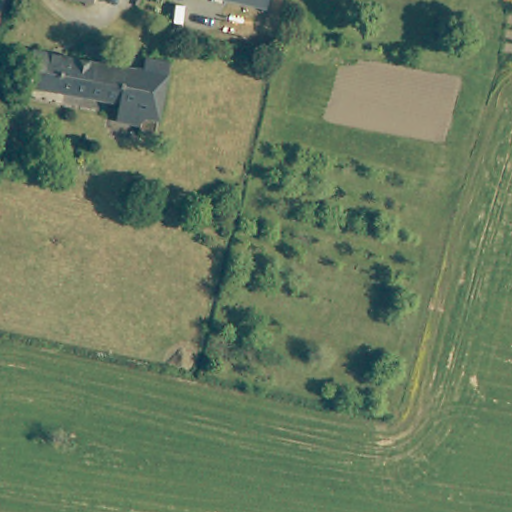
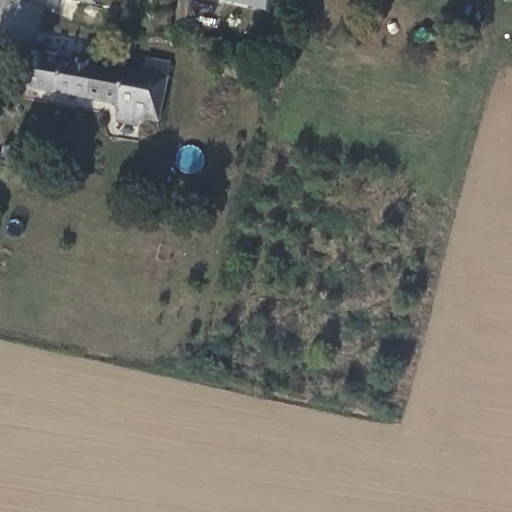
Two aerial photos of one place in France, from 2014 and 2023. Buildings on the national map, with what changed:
unchanged [(93,2),(87,0),(94,0),(93,2)]
unchanged [(263,4),(245,0),(264,0),(263,4)]
unchanged [(125,100),(89,94),(62,90),(56,89),(29,84),(36,52),(68,57),(95,62),(144,70),(146,61),(170,65),(159,119),(122,112),(125,100)]

